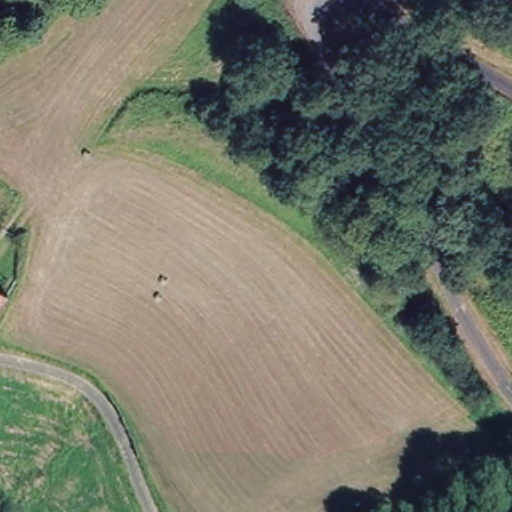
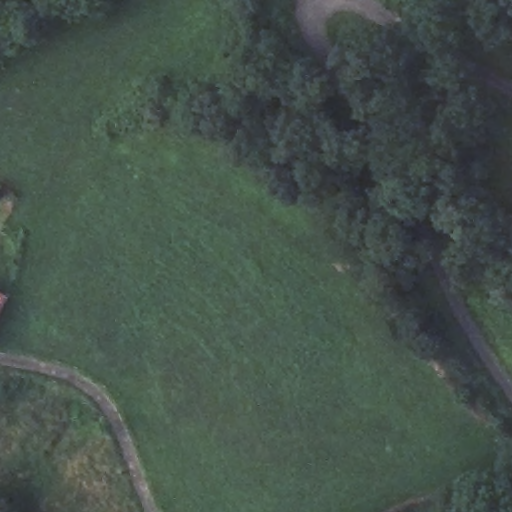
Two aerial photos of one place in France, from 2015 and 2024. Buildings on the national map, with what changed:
unchanged [(2,296),(0,302),(0,296),(2,296)]

